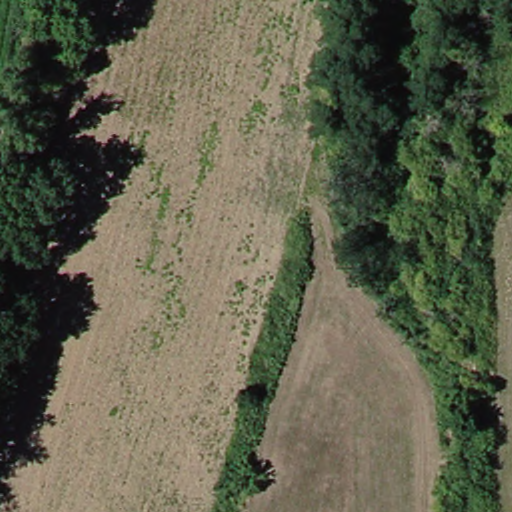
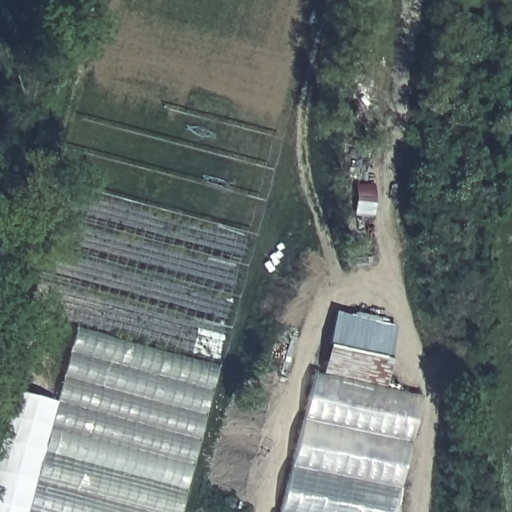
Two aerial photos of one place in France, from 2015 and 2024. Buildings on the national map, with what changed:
new [(0,443),(14,389),(56,401),(75,327),(27,312),(81,117),(155,138),(165,106),(280,140),(220,365),(181,512),(0,512),(0,443)]
new [(335,311),(397,325),(387,388),(322,375),(335,311)]
new [(312,372),(322,375),(387,388),(426,397),(398,512),(277,512),(312,372)]

